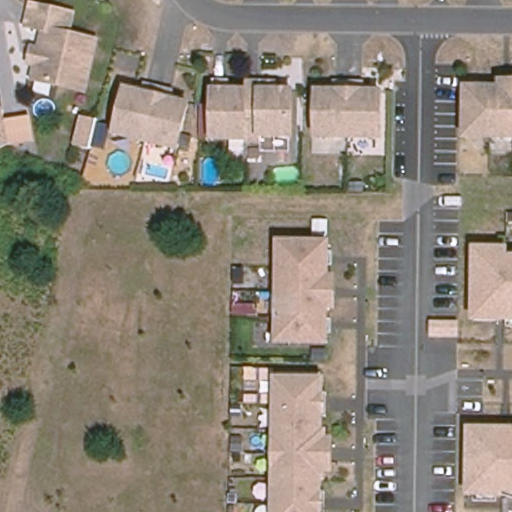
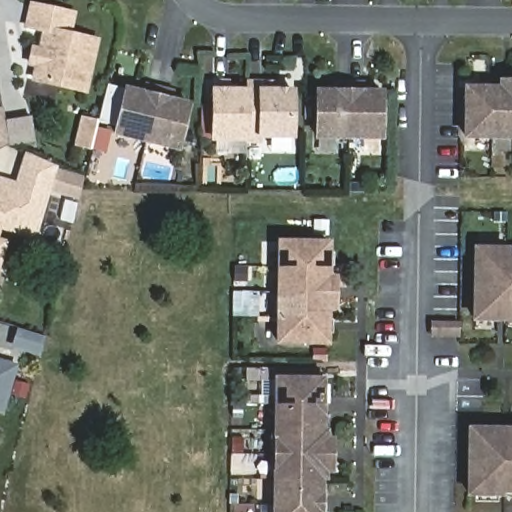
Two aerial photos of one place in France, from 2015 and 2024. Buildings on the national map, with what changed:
unchanged [(38,73),(52,25),(27,17),(32,0),(36,0),(80,13),(75,30),(102,38),(88,87),(38,73)]
unchanged [(512,138),(464,136),(468,85),(512,86),(512,138)]
unchanged [(190,104),(176,150),(116,134),(130,87),(190,104)]
unchanged [(296,90),(295,137),(214,138),(209,89),(296,90)]
unchanged [(384,92),(382,140),(316,137),(319,90),(384,92)]
unchanged [(81,115),(99,119),(92,152),(73,149),(81,115)]
unchanged [(34,116),(38,141),(10,145),(11,151),(0,157),(0,117),(6,116),(6,120),(34,116)]
new [(16,181),(26,152),(59,166),(36,240),(2,230),(0,239),(0,177),(16,181)]
new [(9,240),(0,269),(0,239),(9,240)]
unchanged [(329,241),(327,346),(278,343),(280,240),(329,241)]
unchanged [(512,254),(512,322),(473,322),(475,244),(510,245),(509,255),(512,254)]
unchanged [(461,338),(432,338),(432,320),(461,320),(461,338)]
new [(5,413),(0,412),(0,359),(19,363),(5,413)]
unchanged [(325,427),(330,427),(330,436),(336,436),(335,472),(329,472),(328,479),(324,480),(324,512),(272,512),(276,375),(327,375),(325,427)]
unchanged [(467,423),(512,424),(512,496),(468,495),(467,423)]

